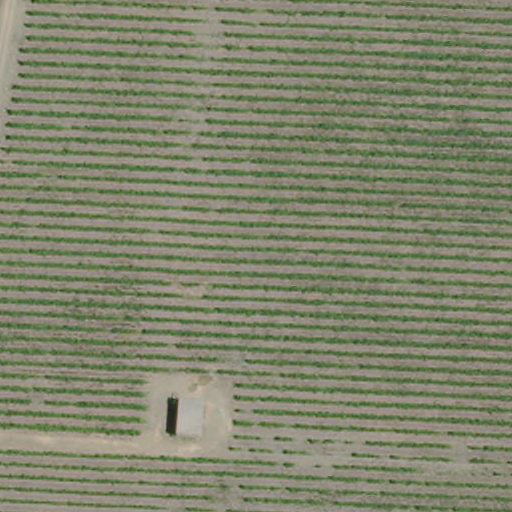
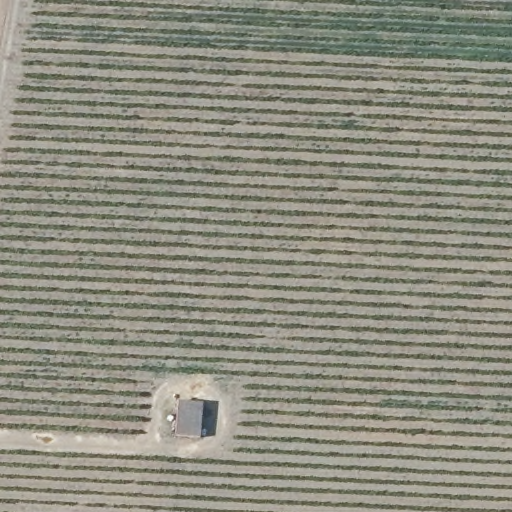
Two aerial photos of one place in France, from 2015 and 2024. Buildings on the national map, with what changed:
unchanged [(199,403),(200,437),(176,436),(178,404),(199,403)]

